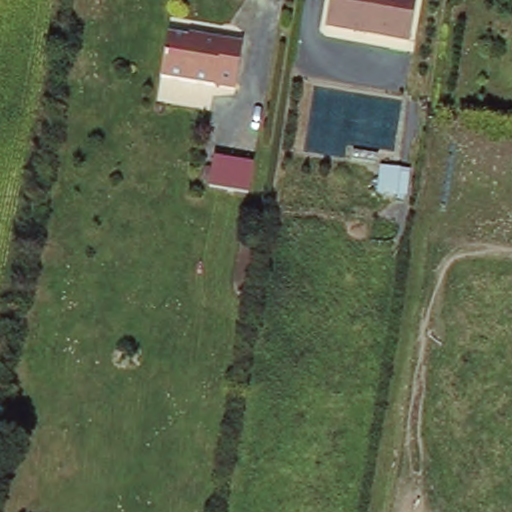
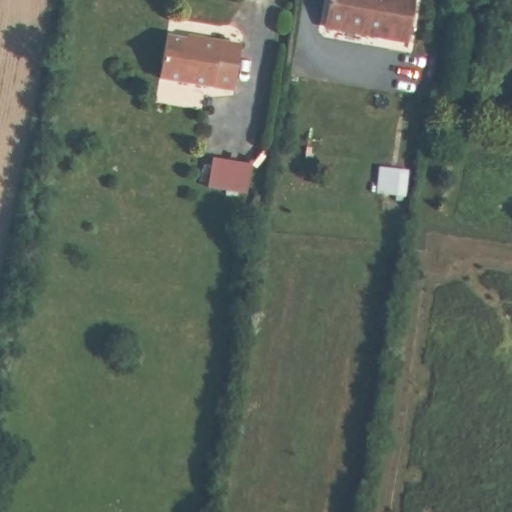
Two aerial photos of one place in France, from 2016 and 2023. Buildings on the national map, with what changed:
unchanged [(413,0),(408,34),(325,19),(328,0),(413,0)]
unchanged [(193,39),(194,36),(237,43),(231,88),(156,76),(163,34),(193,39)]
unchanged [(240,151),(236,181),(197,175),(201,145),(240,151)]

